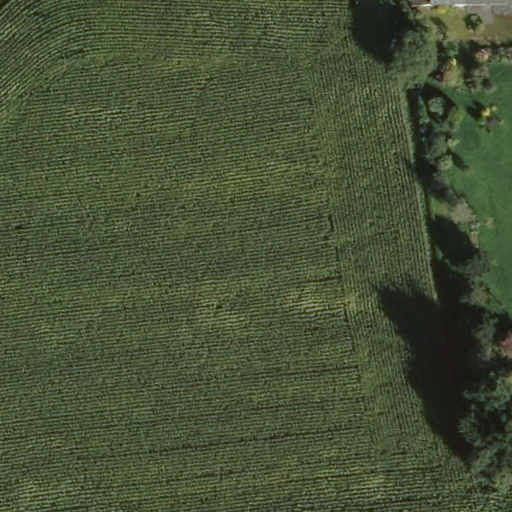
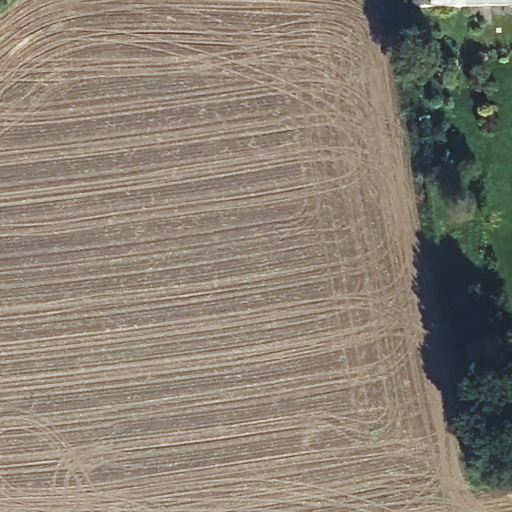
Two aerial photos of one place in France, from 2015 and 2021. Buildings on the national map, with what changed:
unchanged [(395,0),(512,0),(512,9),(396,10),(395,0)]

